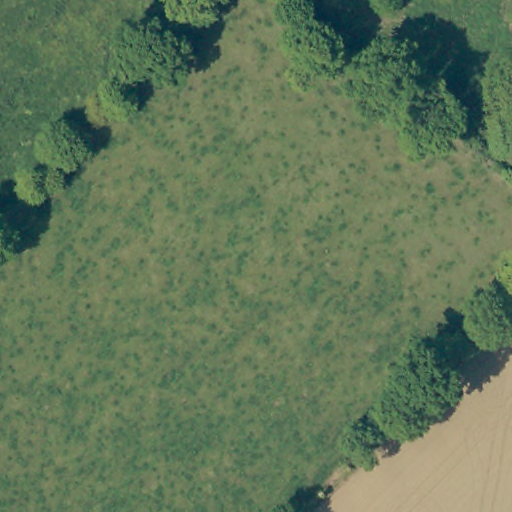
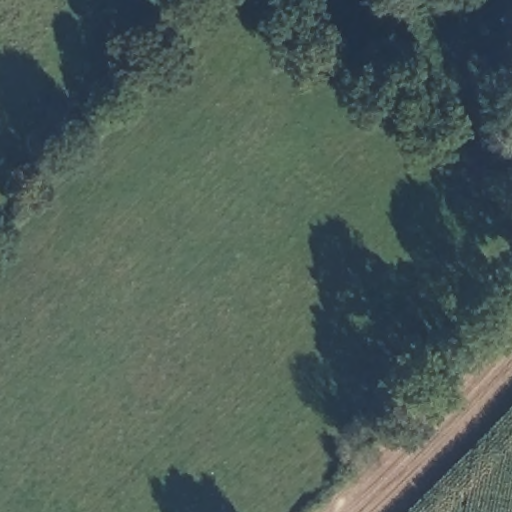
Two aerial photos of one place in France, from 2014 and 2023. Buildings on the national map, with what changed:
[]

